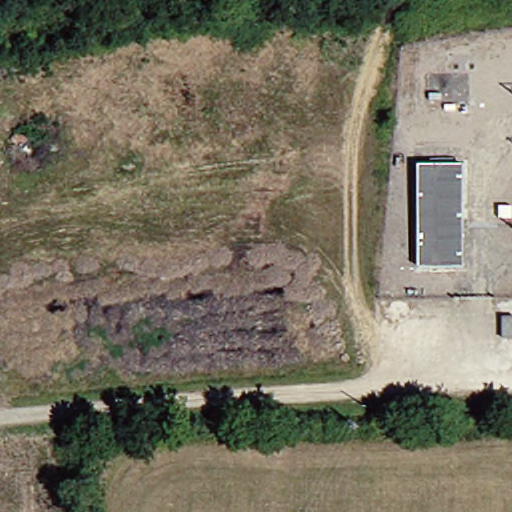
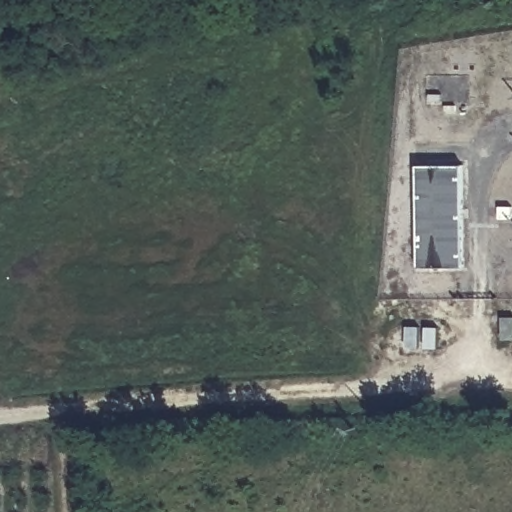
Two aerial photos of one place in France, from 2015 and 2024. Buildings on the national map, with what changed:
unchanged [(449,273),(407,270),(415,166),(457,170),(449,273)]
unchanged [(510,346),(496,344),(497,323),(509,323),(510,346)]

